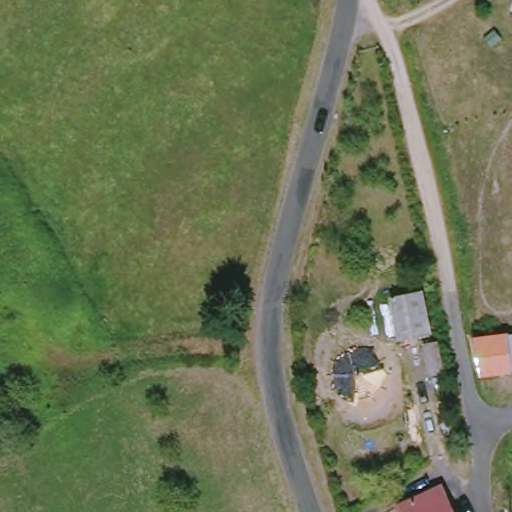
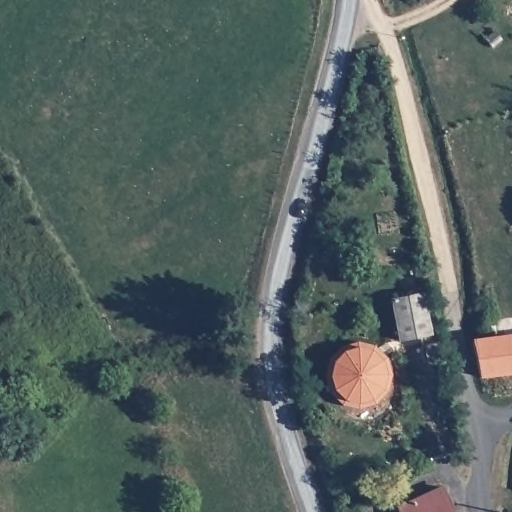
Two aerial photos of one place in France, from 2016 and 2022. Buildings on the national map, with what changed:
unchanged [(420,289),(425,330),(399,334),(391,295),(420,289)]
unchanged [(442,368),(427,371),(422,341),(437,337),(442,368)]
unchanged [(512,372),(482,377),(476,342),(508,339),(512,338),(512,372)]
new [(329,360),(335,351),(343,345),(355,342),(367,343),(378,346),(385,355),(390,370),(387,389),(375,402),(360,407),(345,404),(336,398),(329,387),(325,374),(329,360)]
unchanged [(447,490),(458,512),(405,512),(404,509),(447,490)]

